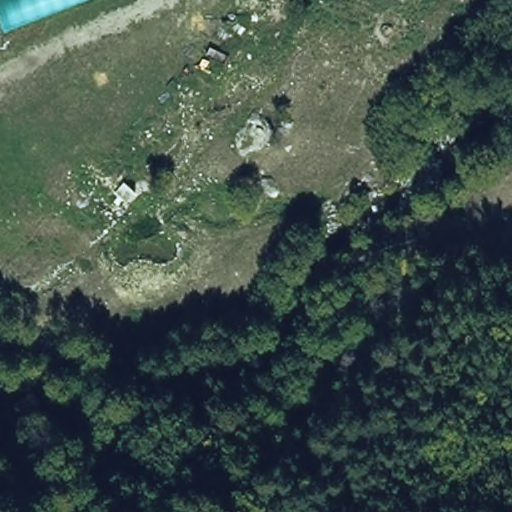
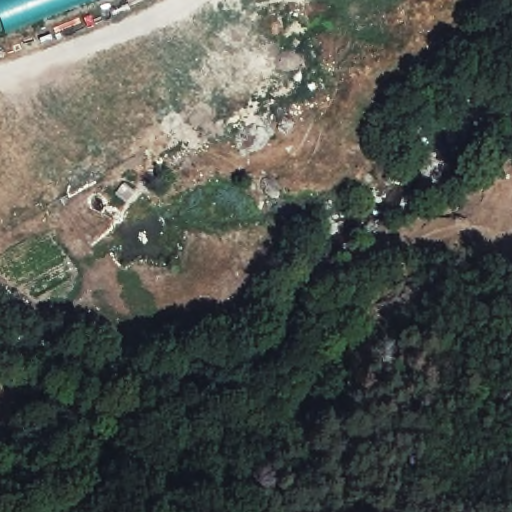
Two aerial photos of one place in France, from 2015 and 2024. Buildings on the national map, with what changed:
unchanged [(64,0),(0,23),(0,0),(64,0)]

